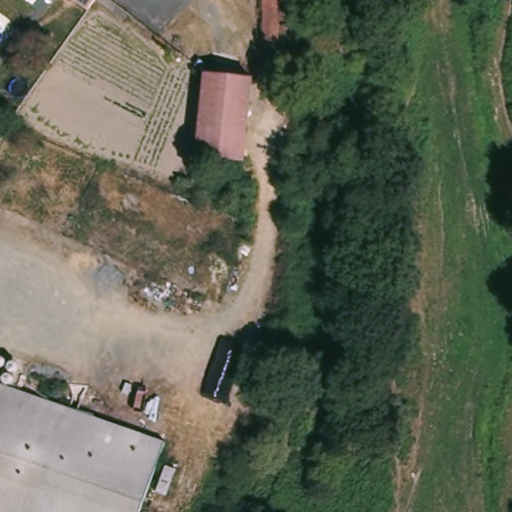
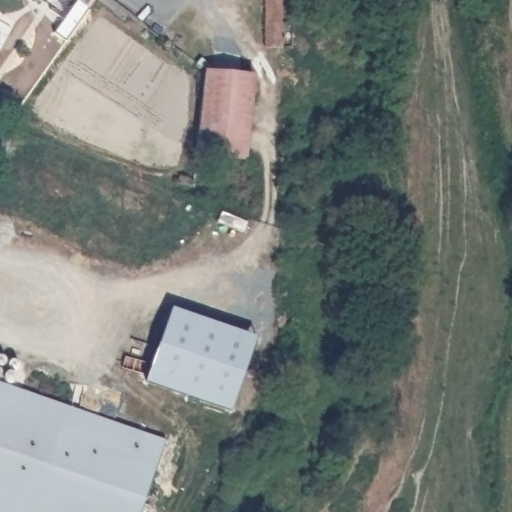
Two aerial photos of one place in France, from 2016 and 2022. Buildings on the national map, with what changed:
unchanged [(84,0),(94,0),(91,4),(84,0)]
unchanged [(282,0),(282,50),(267,49),(267,0),(282,0)]
unchanged [(207,73),(256,78),(248,158),(198,153),(207,73)]
new [(146,381),(174,307),(256,338),(230,412),(146,381)]
unchanged [(168,439),(142,512),(0,512),(0,380),(168,439)]

